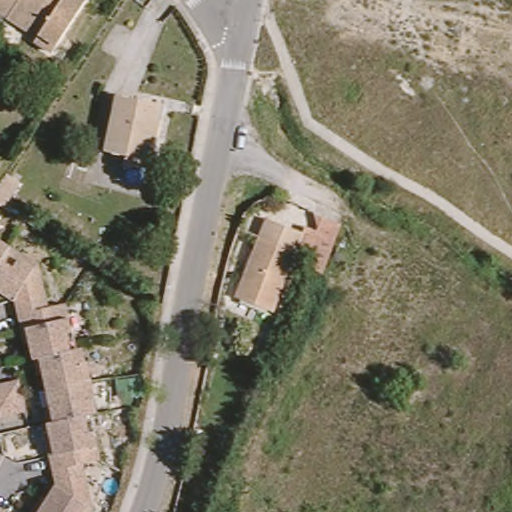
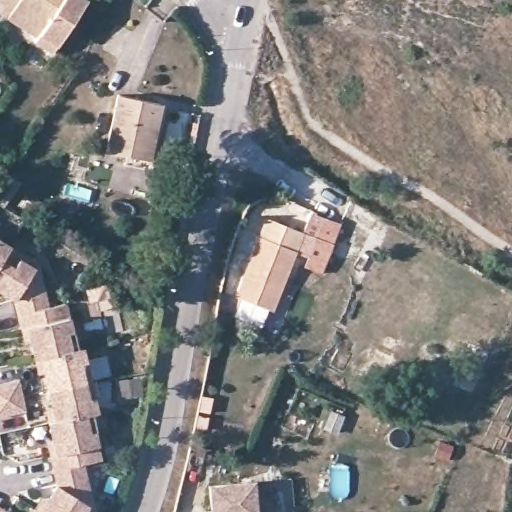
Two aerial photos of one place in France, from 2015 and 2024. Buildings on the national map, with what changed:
unchanged [(86,0),(89,2),(52,58),(35,46),(37,43),(8,23),(0,17),(0,0),(86,0)]
unchanged [(117,95),(160,104),(149,160),(106,151),(117,95)]
unchanged [(20,183),(3,208),(0,206),(0,184),(6,174),(20,183)]
unchanged [(305,234),(314,215),(339,224),(320,275),(294,268),(273,314),(232,299),(265,221),(305,234)]
unchanged [(20,260),(22,258),(37,268),(45,298),(48,313),(17,319),(14,305),(1,297),(0,298),(0,247),(20,260)]
unchanged [(52,444),(48,428),(45,413),(52,411),(45,378),(38,379),(35,365),(30,348),(25,349),(21,334),(17,319),(48,313),(65,309),(70,337),(72,337),(76,355),(81,354),(84,369),(90,386),(94,404),(92,404),(95,419),(91,419),(95,436),(93,437),(100,465),(83,469),(52,476),(50,462),(46,446),(52,444)]
unchanged [(20,384),(24,411),(0,415),(0,385),(20,384)]
unchanged [(42,502),(48,504),(56,492),(52,476),(83,469),(86,481),(93,512),(36,512),(42,502)]
new [(258,512),(204,512),(203,502),(209,503),(207,484),(254,479),(258,512)]
unchanged [(2,512),(0,512),(0,511),(2,512)]

